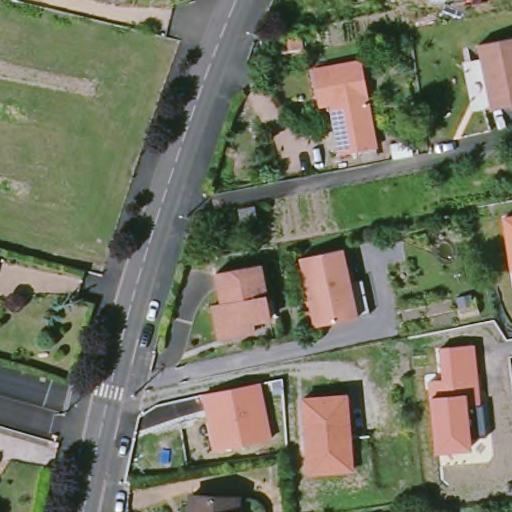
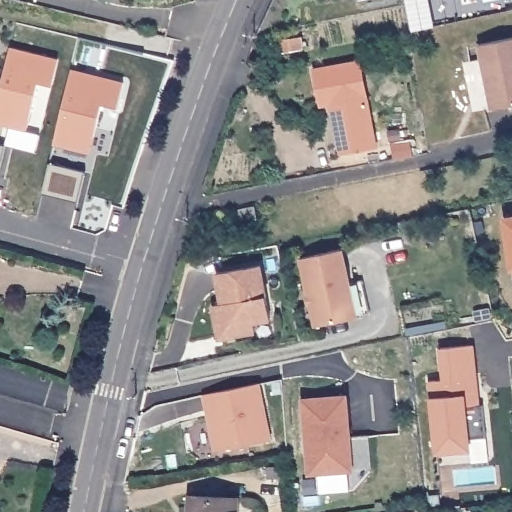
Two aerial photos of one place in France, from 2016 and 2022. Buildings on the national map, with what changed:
unchanged [(512,35),(512,103),(493,107),(478,43),(512,35)]
new [(57,60),(50,87),(36,84),(24,132),(0,126),(0,86),(9,49),(57,60)]
unchanged [(331,108),(319,111),(311,75),(358,65),(376,150),(344,158),(331,108)]
new [(117,109),(102,105),(90,152),(55,144),(72,67),(124,80),(117,109)]
new [(5,145),(0,169),(0,144),(5,145)]
new [(78,200),(44,191),(50,163),(85,172),(78,200)]
unchanged [(512,217),(512,265),(504,219),(512,217)]
unchanged [(346,250),(358,318),(316,325),(304,257),(346,250)]
unchanged [(216,330),(211,302),(218,300),(213,269),(257,261),(268,315),(251,318),(252,328),(234,332),(216,335),(216,330)]
unchanged [(483,406),(486,438),(472,440),(473,451),(437,456),(432,396),(430,380),(444,380),(442,350),(476,346),(483,406)]
unchanged [(260,382),(271,440),(213,452),(199,394),(260,382)]
unchanged [(347,393),(353,472),(307,475),(301,397),(347,393)]
unchanged [(236,500),(236,512),(189,512),(190,497),(236,500)]

